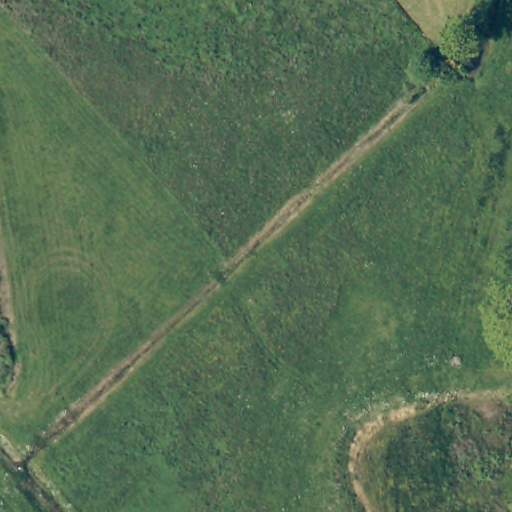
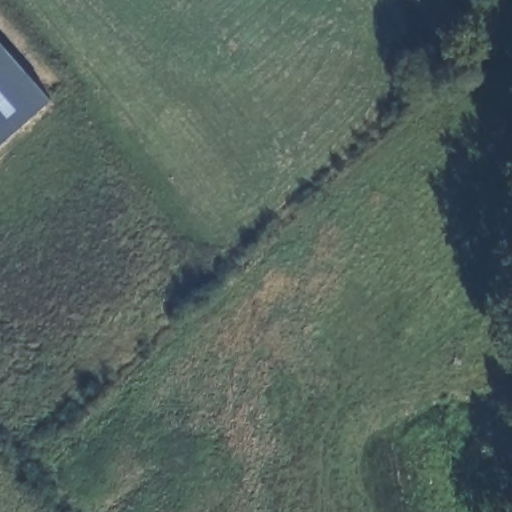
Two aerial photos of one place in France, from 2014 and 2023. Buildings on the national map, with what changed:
new [(0,151),(0,51),(50,106),(0,151)]

